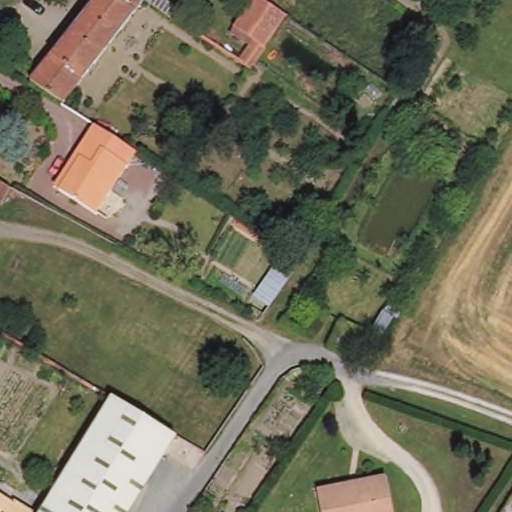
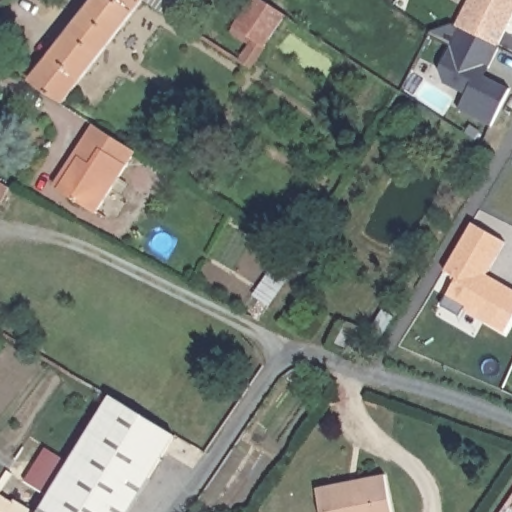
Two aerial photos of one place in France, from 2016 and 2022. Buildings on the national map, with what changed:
unchanged [(88,0),(137,0),(59,101),(26,79),(88,0)]
unchanged [(166,16),(142,0),(164,0),(172,5),(166,16)]
unchanged [(264,47),(266,48),(251,70),(238,61),(239,59),(249,45),(230,32),(251,0),(262,0),(286,15),(264,47)]
new [(510,89),(492,127),(457,110),(464,95),(444,84),(439,66),(449,44),(430,35),(433,27),(457,21),(467,0),(512,0),(512,16),(485,77),(510,89)]
unchanged [(133,150),(135,151),(95,214),(58,190),(79,157),(74,154),(94,125),(133,150)]
unchanged [(8,186),(10,187),(2,202),(0,202),(0,182),(8,186)]
new [(488,274),(512,289),(512,319),(504,333),(463,308),(459,315),(442,305),(457,278),(445,271),(471,223),(505,242),(488,274)]
unchanged [(256,292),(286,249),(300,260),(271,303),(256,292)]
unchanged [(175,437),(128,512),(39,512),(111,397),(175,437)]
unchanged [(338,485),(369,478),(385,475),(392,512),(321,512),(316,489),(338,485)]
unchanged [(11,503),(14,500),(32,512),(0,512),(0,496),(11,503)]

